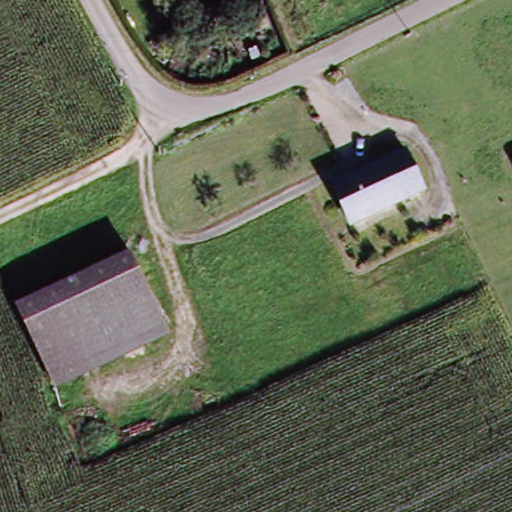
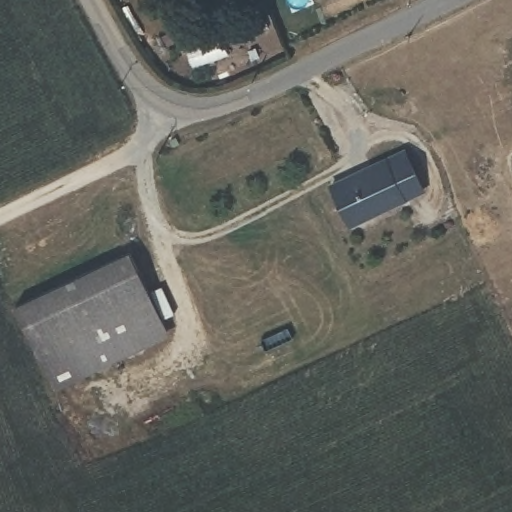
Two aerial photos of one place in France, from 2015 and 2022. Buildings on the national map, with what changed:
unchanged [(403,146),(426,191),(345,232),(323,183),(403,146)]
unchanged [(127,254),(167,338),(50,394),(15,304),(127,254)]

